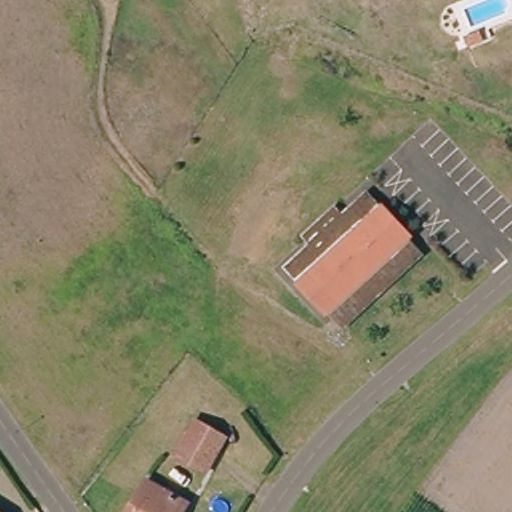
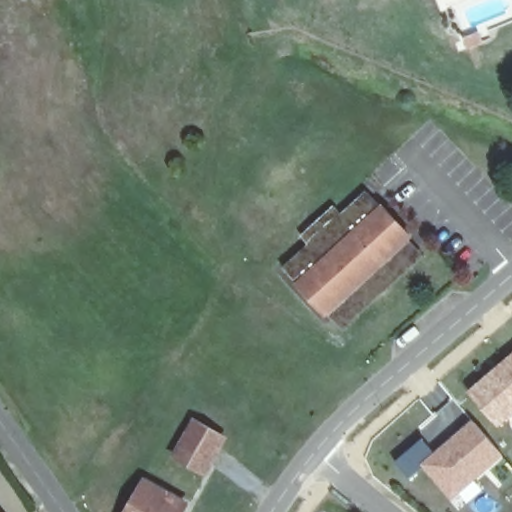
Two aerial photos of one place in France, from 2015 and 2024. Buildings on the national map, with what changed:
unchanged [(328,315),(286,268),(312,245),(305,236),(337,206),(345,215),(352,209),(372,191),(372,190),(382,202),(384,205),(415,237),(328,315)]
unchanged [(342,329),(328,315),(415,237),(427,251),(342,329)]
new [(497,425),(470,393),(512,356),(512,412),(497,425)]
unchanged [(196,420),(227,437),(207,472),(175,453),(196,420)]
new [(425,465),(473,422),(501,454),(452,496),(425,465)]
new [(395,463),(403,455),(422,439),(436,455),(425,465),(425,466),(417,472),(409,480),(395,463)]
unchanged [(189,502),(183,512),(126,512),(145,478),(189,502)]

